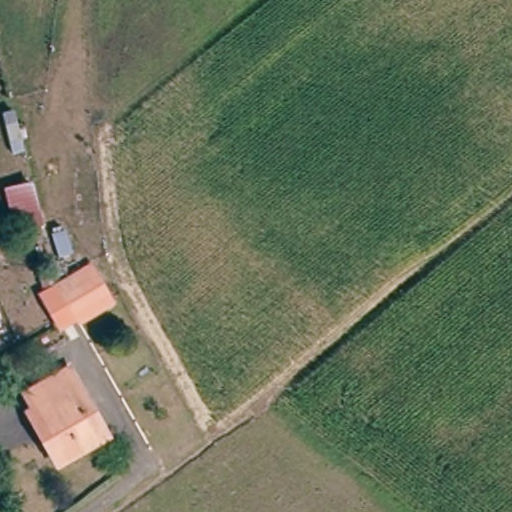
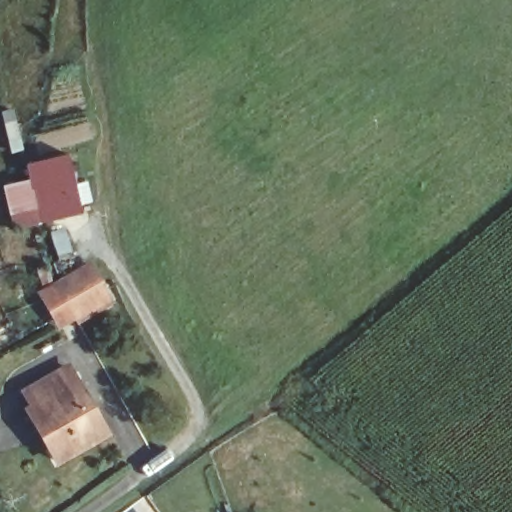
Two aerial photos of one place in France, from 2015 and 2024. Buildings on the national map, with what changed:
new [(69,154),(84,215),(14,231),(3,187),(30,180),(26,165),(69,154)]
unchanged [(70,328),(47,287),(89,264),(110,309),(70,328)]
unchanged [(40,404),(36,389),(82,376),(101,446),(46,460),(42,444),(31,406),(40,404)]

